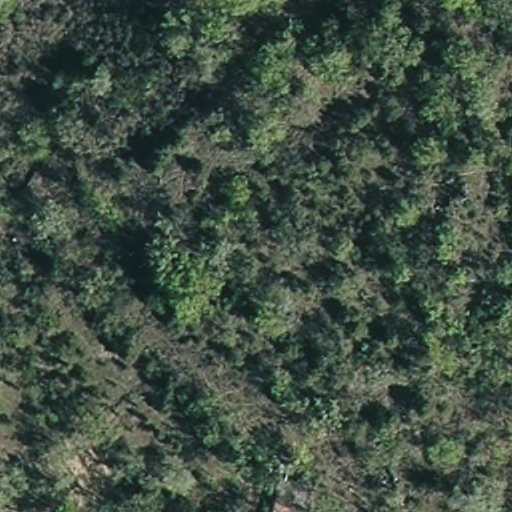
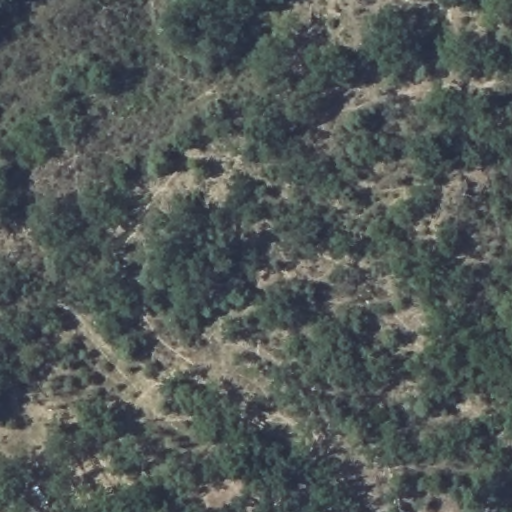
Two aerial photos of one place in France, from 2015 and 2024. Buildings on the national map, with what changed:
unchanged [(316,512),(284,512),(286,505),(316,511),(316,512)]

